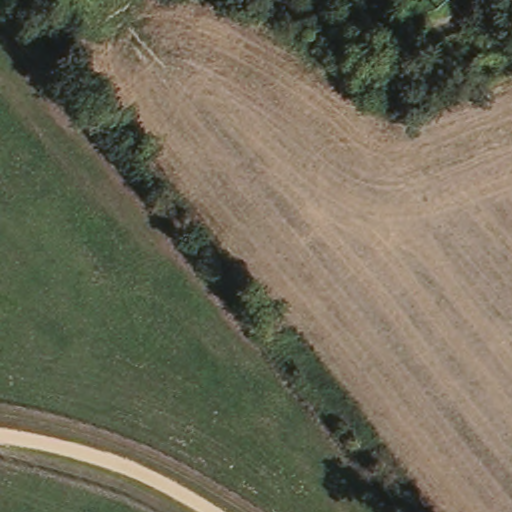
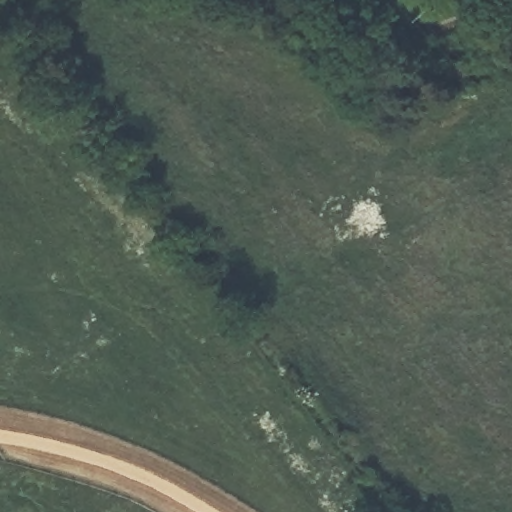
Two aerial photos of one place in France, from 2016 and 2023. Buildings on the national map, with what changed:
[]

